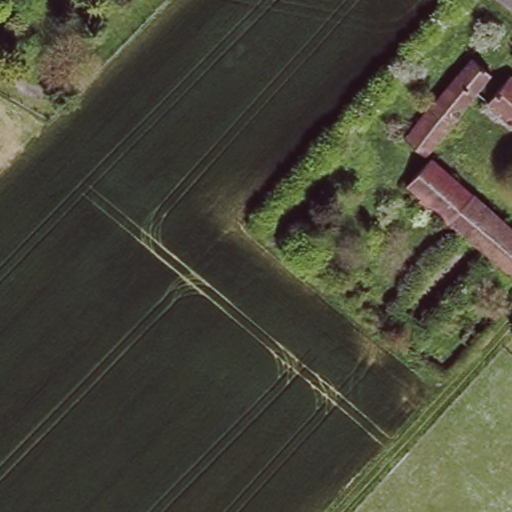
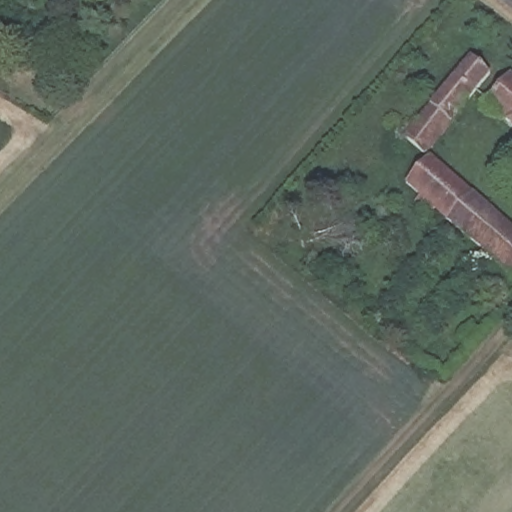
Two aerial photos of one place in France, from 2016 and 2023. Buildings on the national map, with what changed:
unchanged [(494,69),(425,148),(405,130),(474,51),(494,69)]
unchanged [(491,102),(512,79),(512,120),(491,102)]
unchanged [(407,189),(433,156),(512,224),(512,279),(407,189)]
unchanged [(467,347),(457,338),(480,315),(490,322),(467,347)]

